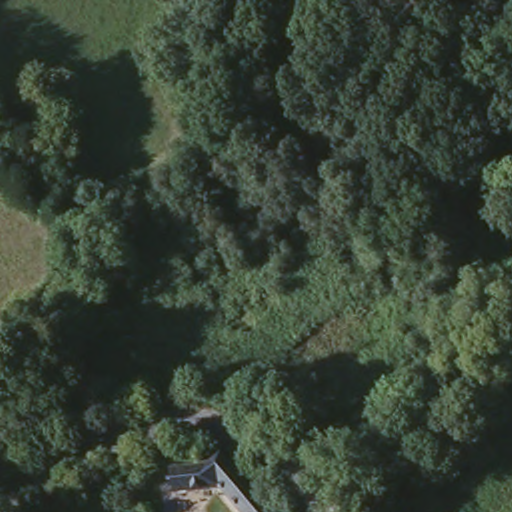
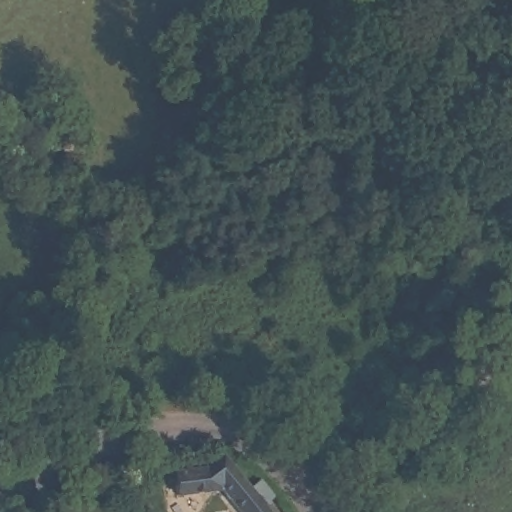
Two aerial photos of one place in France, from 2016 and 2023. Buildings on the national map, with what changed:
unchanged [(265,470),(293,512),(238,512),(194,464),(225,444),(250,477),(265,470)]

